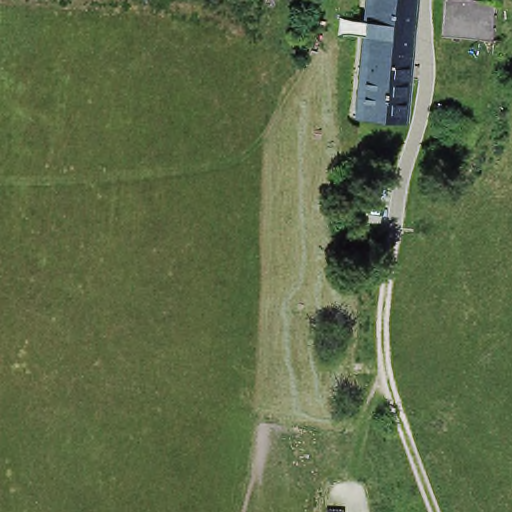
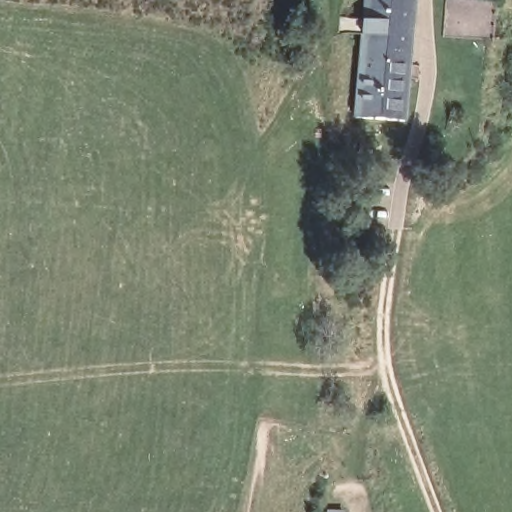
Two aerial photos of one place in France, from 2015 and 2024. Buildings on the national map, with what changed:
unchanged [(364,0),(414,0),(403,120),(355,115),(364,0)]
unchanged [(447,0),(495,0),(491,37),(444,35),(447,0)]

